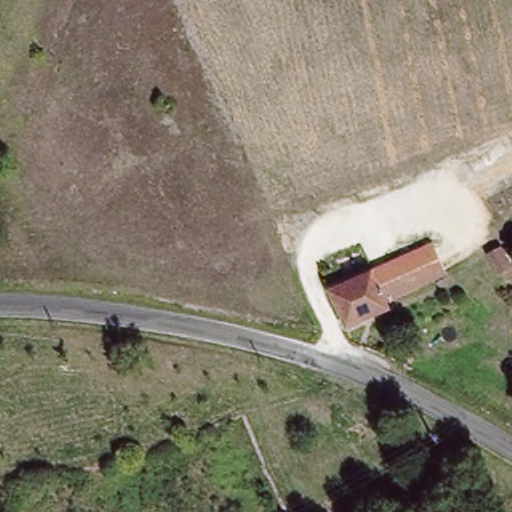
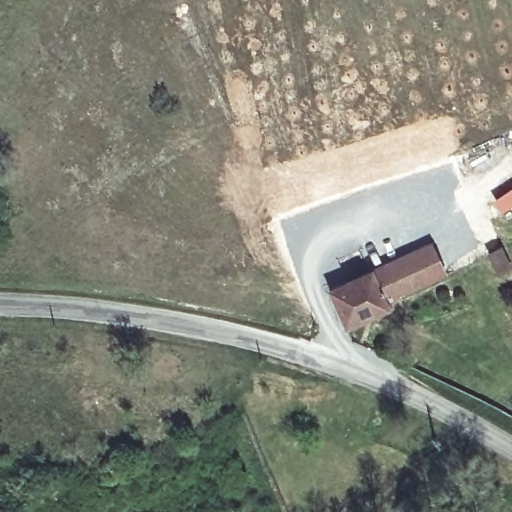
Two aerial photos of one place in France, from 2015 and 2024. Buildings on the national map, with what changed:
new [(501,211),(493,201),(512,189),(512,204),(501,211)]
unchanged [(397,302),(356,320),(339,281),(416,248),(430,242),(443,272),(430,278),(394,294),(397,302)]

